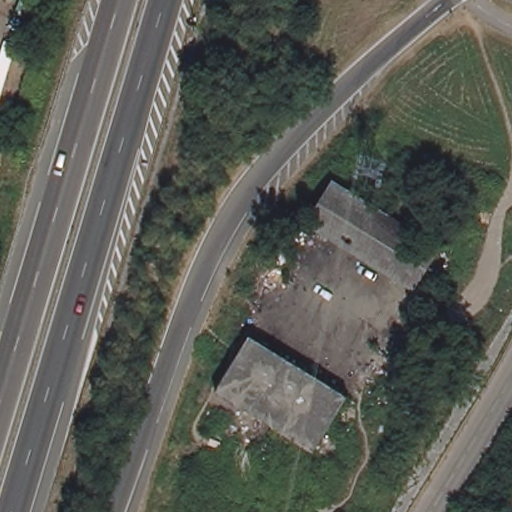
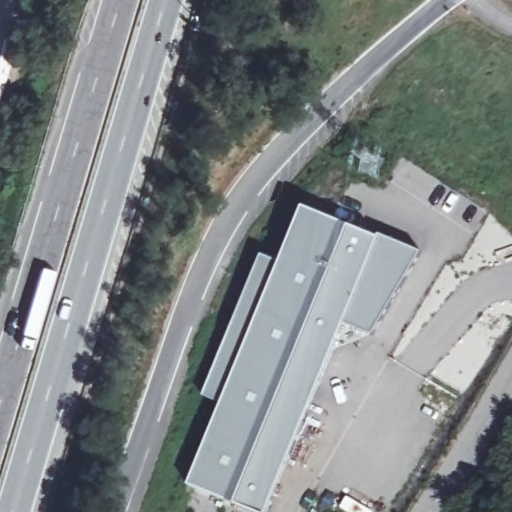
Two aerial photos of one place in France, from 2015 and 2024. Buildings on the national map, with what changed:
demolished [(416,291),(308,226),(336,181),(444,246),(416,291)]
new [(303,208),(379,239),(380,236),(422,254),(374,337),(345,326),(267,512),(250,512),(189,487),(225,404),(209,399),(236,324),(266,258),(280,264),(303,208)]
demolished [(316,452),(217,391),(252,335),(351,396),(316,452)]

